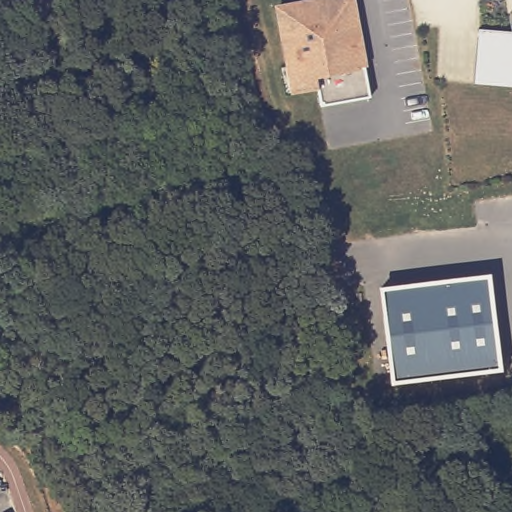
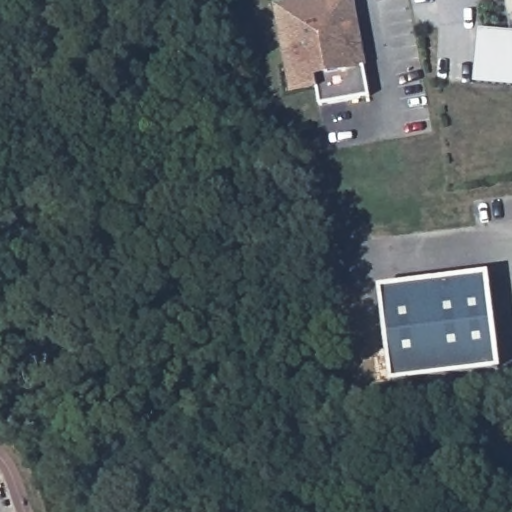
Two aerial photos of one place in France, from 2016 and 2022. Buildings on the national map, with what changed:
unchanged [(294,75),(280,2),(290,0),(355,0),(373,91),(323,100),(320,83),(296,87),(294,75)]
unchanged [(512,86),(472,84),(478,28),(512,31),(512,86)]
unchanged [(392,377),(380,284),(486,270),(498,364),(392,377)]

